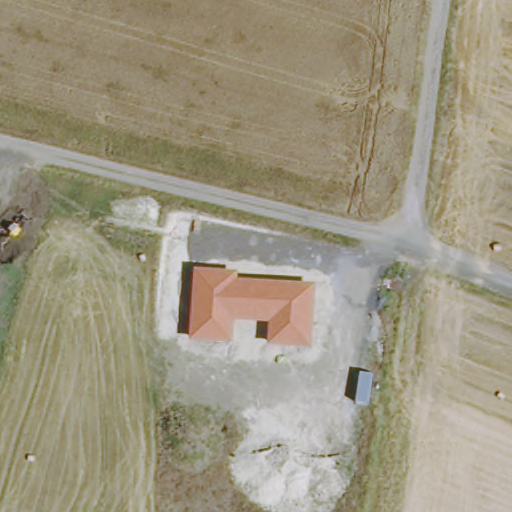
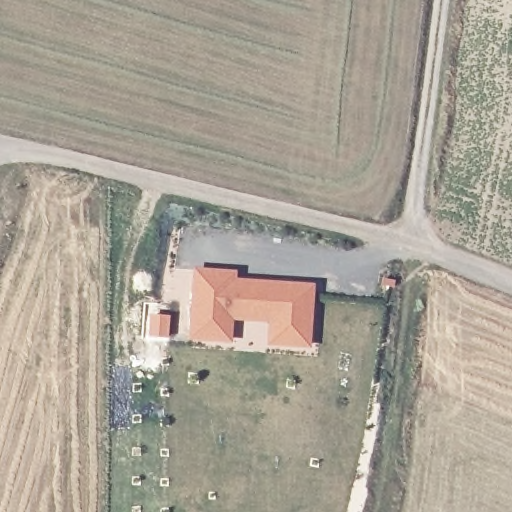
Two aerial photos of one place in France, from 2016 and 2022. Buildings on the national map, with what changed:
unchanged [(312,348),(268,347),(270,323),(235,321),(232,343),(190,340),(195,267),(237,272),(238,279),(315,286),(312,348)]

